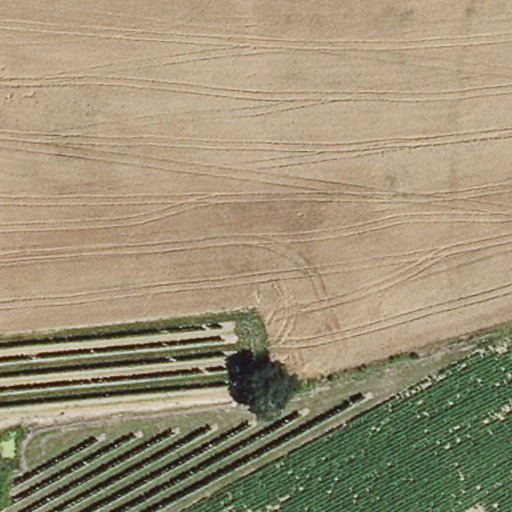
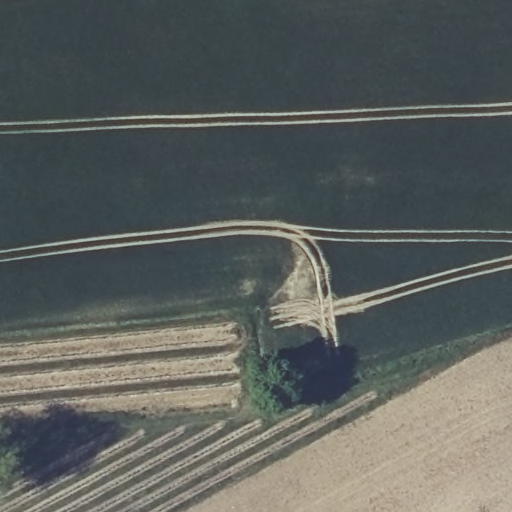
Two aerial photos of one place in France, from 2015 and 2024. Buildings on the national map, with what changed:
[]

